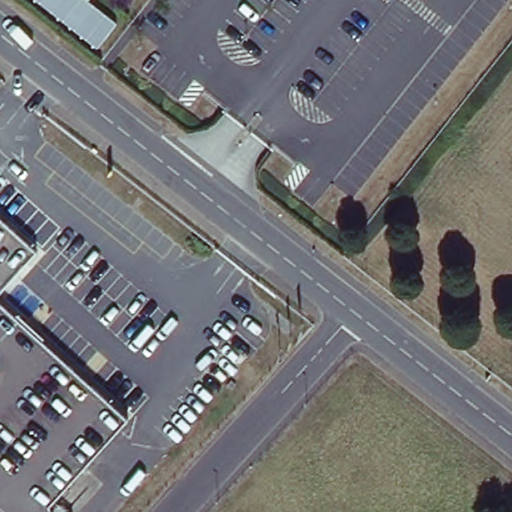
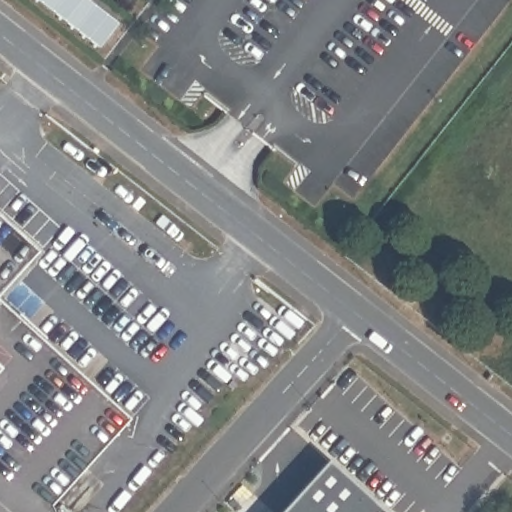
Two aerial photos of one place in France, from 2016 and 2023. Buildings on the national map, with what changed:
unchanged [(62,19),(38,0),(77,0),(62,19)]
unchanged [(77,0),(89,0),(117,27),(98,52),(62,19),(77,0)]
unchanged [(38,251),(0,294),(0,217),(38,251)]
unchanged [(45,512),(0,512),(0,302),(129,418),(45,512)]
new [(381,512),(282,512),(326,463),(381,512)]

